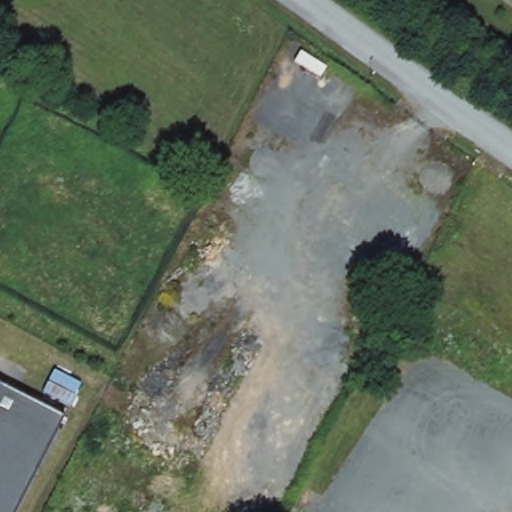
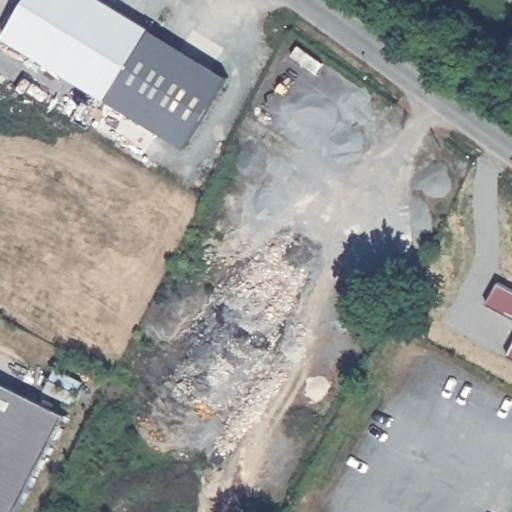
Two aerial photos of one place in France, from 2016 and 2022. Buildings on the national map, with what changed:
new [(4,35),(26,0),(102,0),(227,78),(183,149),(4,35)]
new [(498,283),(512,290),(512,318),(486,304),(498,283)]
new [(512,346),(512,358),(507,355),(512,346)]
unchanged [(63,418),(15,512),(0,512),(0,386),(63,418)]

